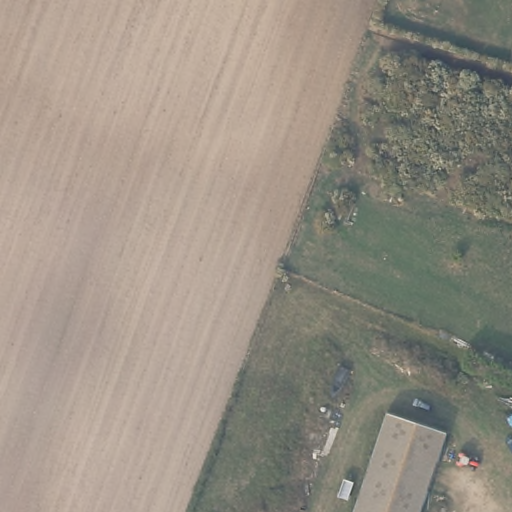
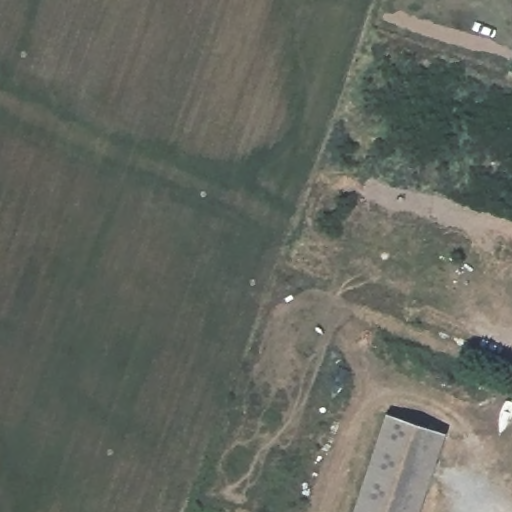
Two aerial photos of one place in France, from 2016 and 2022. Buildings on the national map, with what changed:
unchanged [(443,432),(416,512),(349,512),(382,412),(443,432)]

